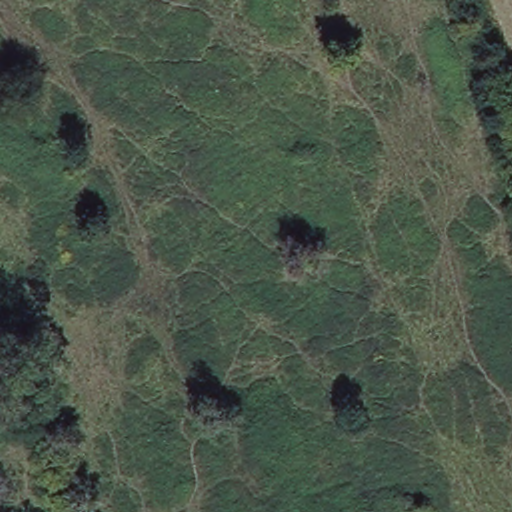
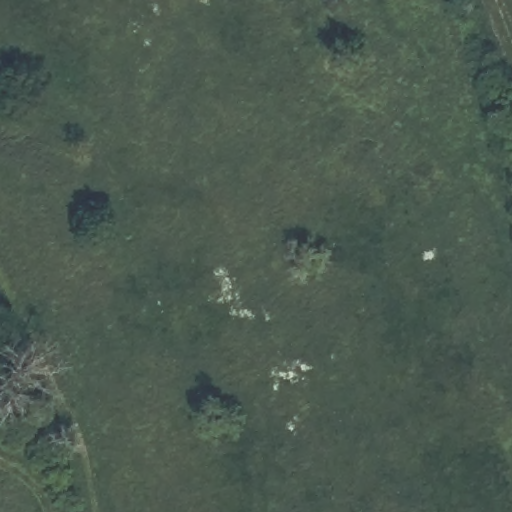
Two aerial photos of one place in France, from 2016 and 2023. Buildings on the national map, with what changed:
[]

